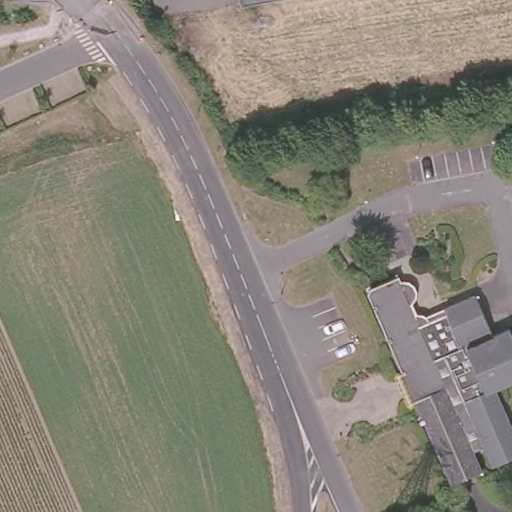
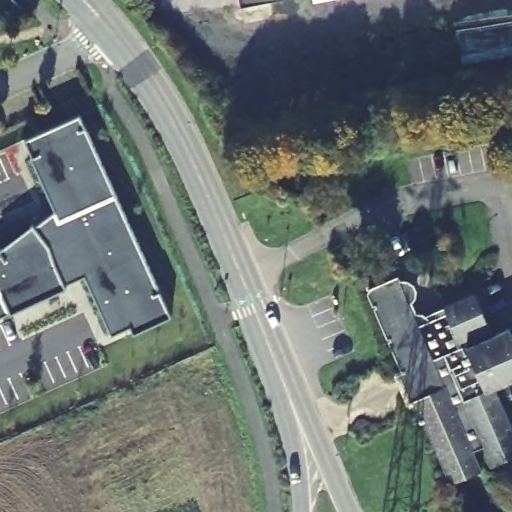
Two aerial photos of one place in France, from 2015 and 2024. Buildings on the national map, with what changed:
new [(170,310),(132,327),(130,321),(111,329),(84,272),(0,312),(0,242),(25,219),(27,223),(44,205),(15,137),(77,109),(170,310)]
unchanged [(410,282),(419,288),(419,300),(412,309),(415,313),(422,311),(431,317),(472,301),(488,337),(504,331),(512,348),(512,381),(488,390),(512,445),(512,457),(487,467),(477,442),(470,445),(480,470),(450,482),(413,398),(409,401),(396,371),(400,368),(367,297),(372,286),(400,277),(402,282),(410,282)]

